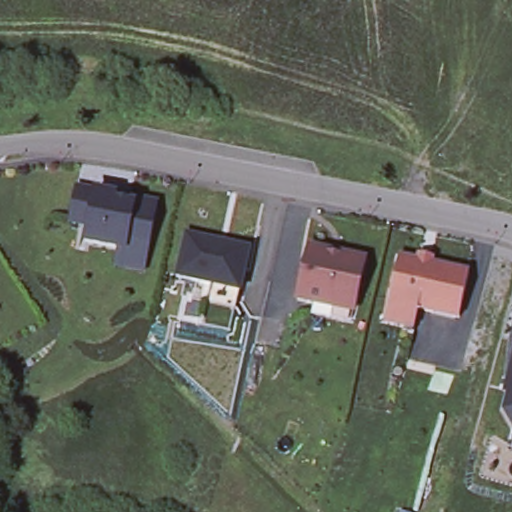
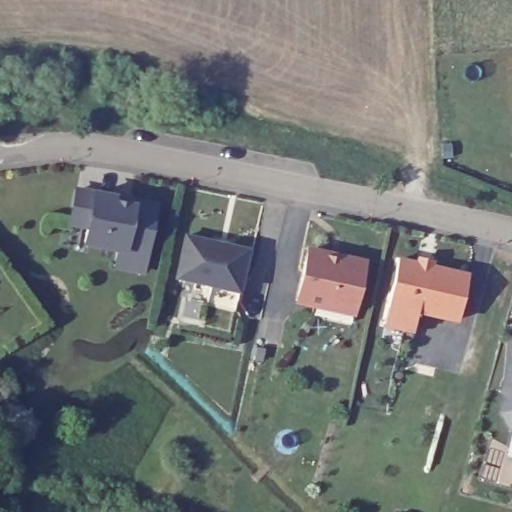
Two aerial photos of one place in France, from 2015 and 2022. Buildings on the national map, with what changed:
unchanged [(113,264),(116,247),(85,241),(87,225),(70,221),(76,188),(94,191),(150,202),(154,209),(145,253),(142,270),(113,264)]
unchanged [(205,300),(210,283),(176,275),(185,234),(248,248),(238,290),(235,306),(205,300)]
unchanged [(365,260),(353,311),(297,298),(308,248),(365,260)]
unchanged [(383,321),(388,301),(397,257),(418,262),(419,257),(430,260),(429,265),(468,273),(458,317),(418,308),(414,327),(383,321)]
unchanged [(505,415),(512,390),(512,425),(505,415)]

